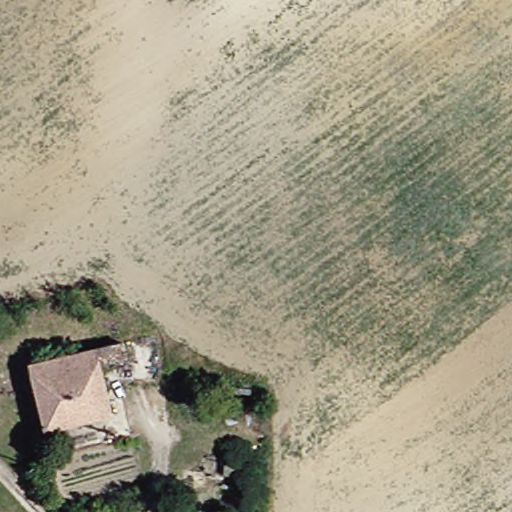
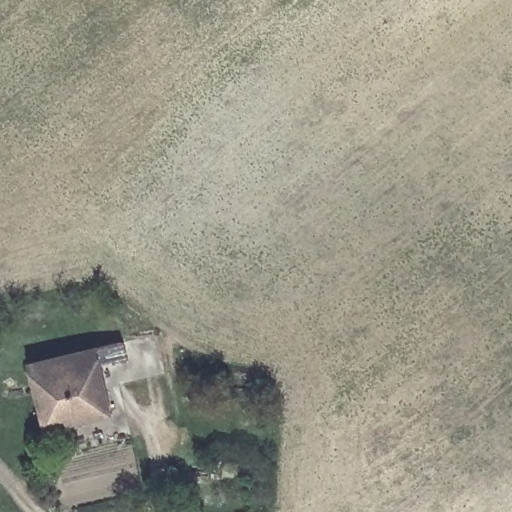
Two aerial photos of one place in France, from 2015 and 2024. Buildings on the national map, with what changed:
unchanged [(94,390),(99,413),(35,429),(20,360),(84,343),(94,390)]

